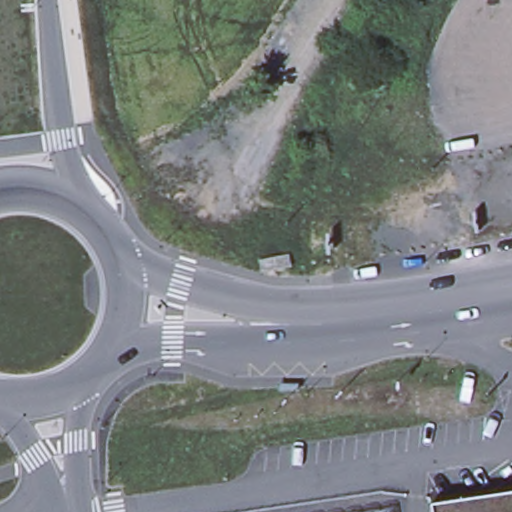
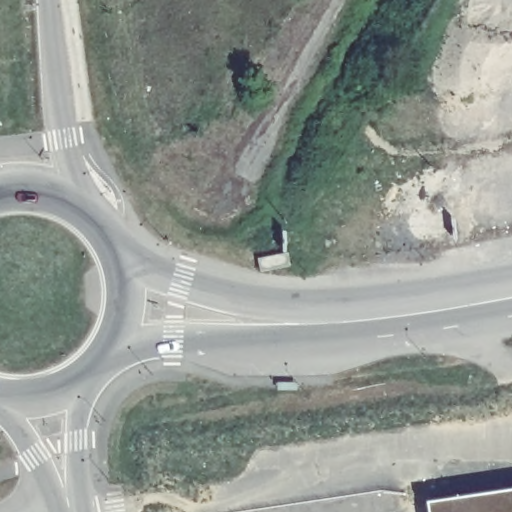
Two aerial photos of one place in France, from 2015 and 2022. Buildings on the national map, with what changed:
unchanged [(512,490),(512,512),(432,512),(430,502),(512,490)]

